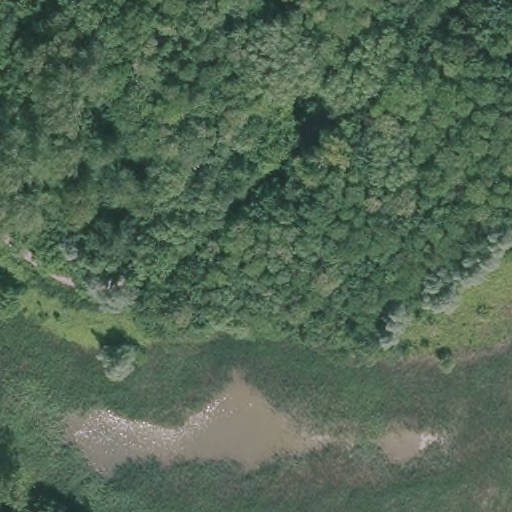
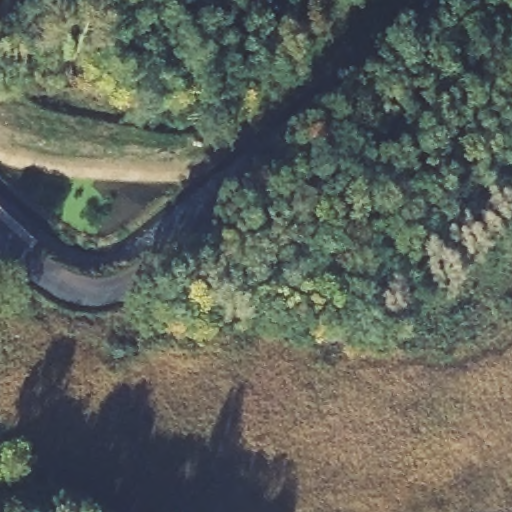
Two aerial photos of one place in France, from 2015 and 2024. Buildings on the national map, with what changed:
[]

